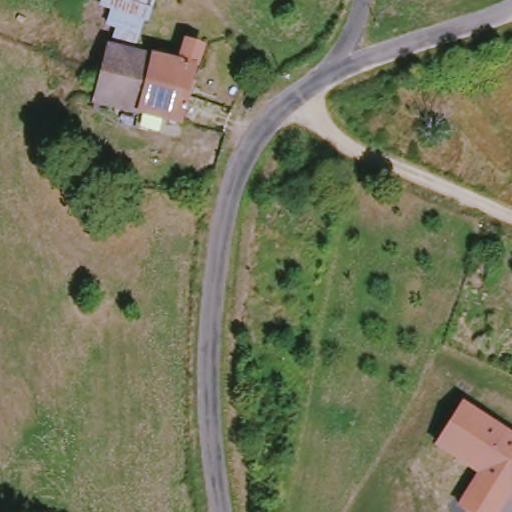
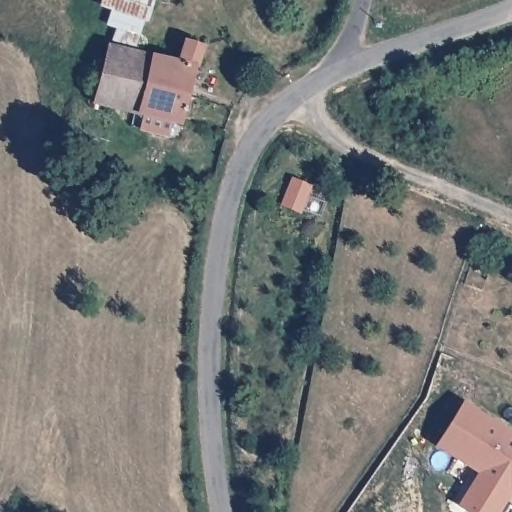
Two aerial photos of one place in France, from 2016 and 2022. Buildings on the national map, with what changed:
unchanged [(144,21),(138,47),(150,55),(151,50),(180,55),(186,34),(207,42),(195,75),(177,120),(175,125),(90,101),(106,44),(113,29),(103,25),(108,10),(98,5),(99,0),(155,0),(150,22),(144,21)]
unchanged [(435,447),(463,402),(512,432),(512,497),(503,512),(467,512),(458,507),(478,475),(435,447)]

